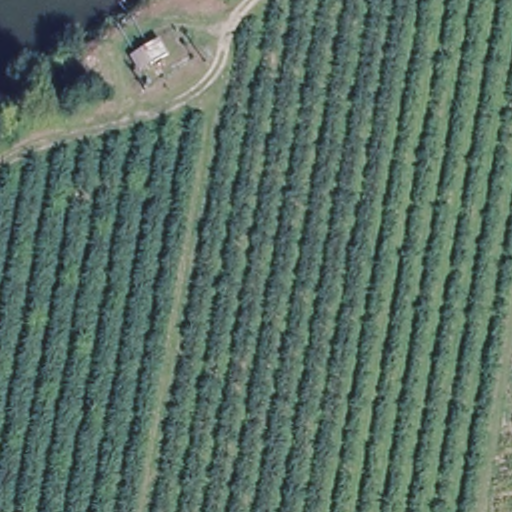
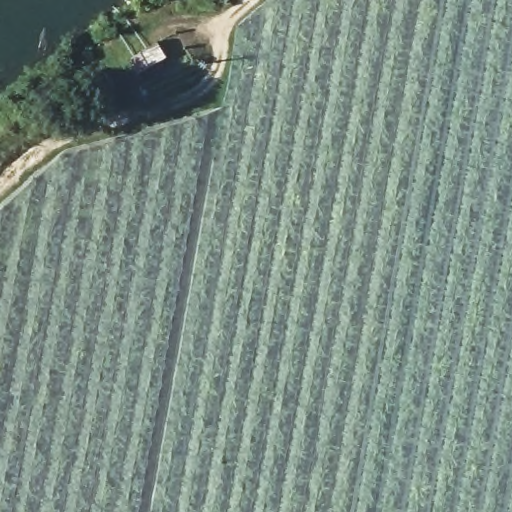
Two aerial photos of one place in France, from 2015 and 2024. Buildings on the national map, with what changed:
unchanged [(172,56),(140,66),(137,52),(166,43),(172,56)]

